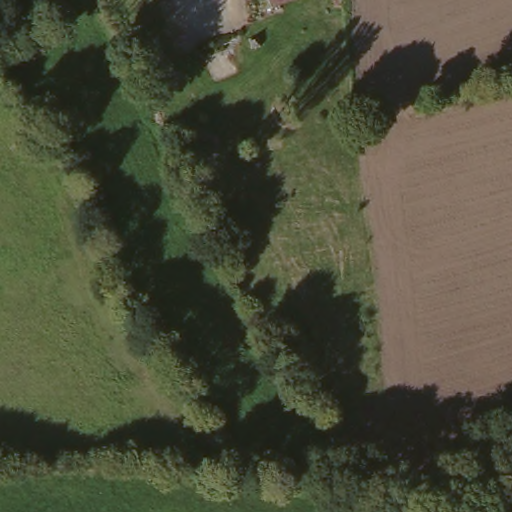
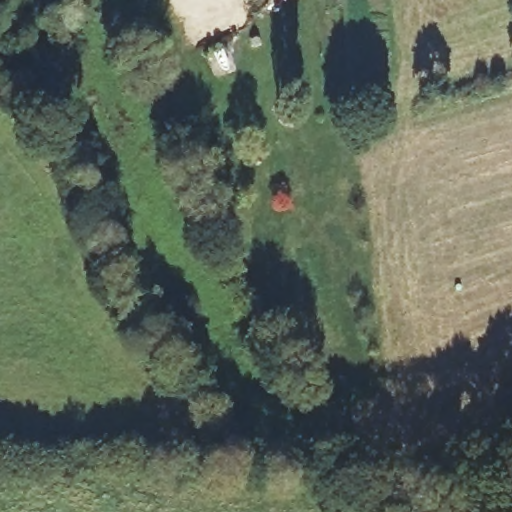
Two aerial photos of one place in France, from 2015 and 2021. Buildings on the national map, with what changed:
unchanged [(260,0),(301,0),(301,1),(263,11),(260,0)]

